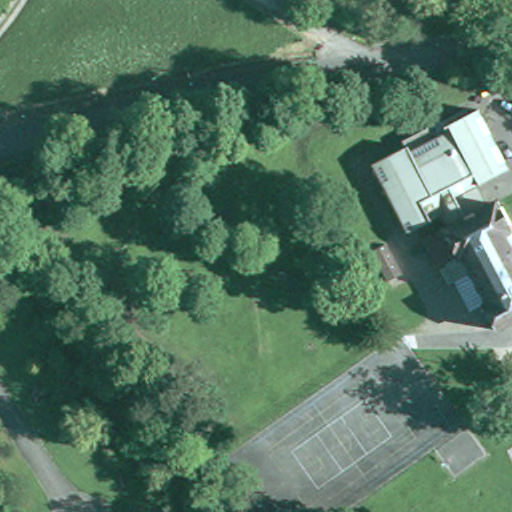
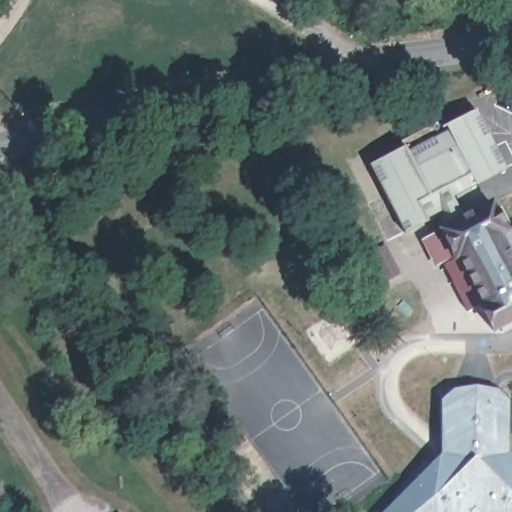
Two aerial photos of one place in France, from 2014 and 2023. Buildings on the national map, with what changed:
unchanged [(416,227),(385,158),(418,141),(417,137),(455,120),(460,128),(493,112),(512,153),(512,173),(499,179),(507,196),(510,194),(512,197),(512,233),(508,235),(512,242),(512,318),(497,325),(485,300),(472,305),(460,281),(452,261),(433,220),(416,227)]
unchanged [(382,237),(396,266),(381,273),(367,245),(382,237)]
new [(441,400),(452,388),(474,385),(497,387),(508,398),(507,452),(512,457),(512,512),(380,512),(440,451),(441,400)]

